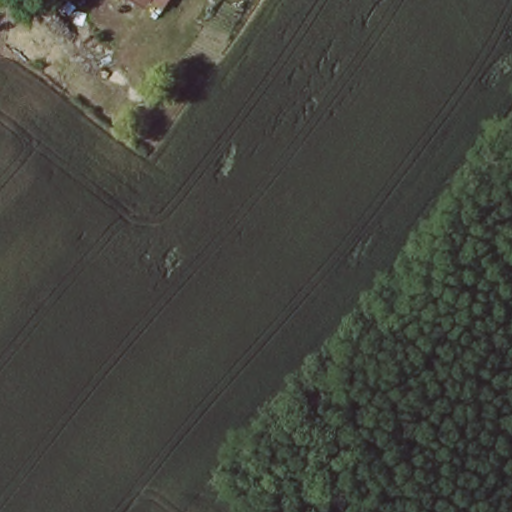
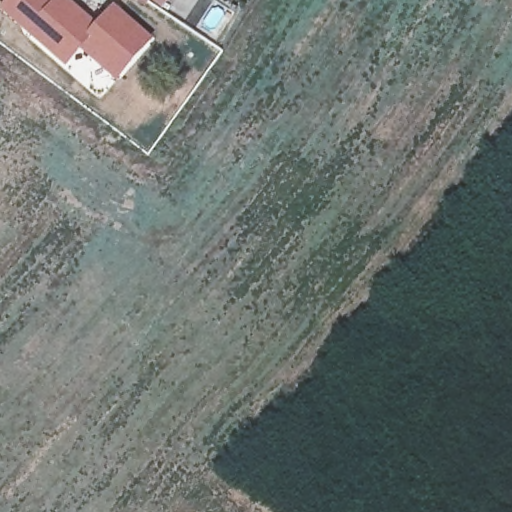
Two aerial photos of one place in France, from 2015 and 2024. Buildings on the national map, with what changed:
new [(96,21),(111,2),(155,39),(116,82),(80,51),(65,67),(0,10),(0,2),(2,0),(72,0),(96,21)]
unchanged [(156,3),(151,0),(158,0),(156,3)]

